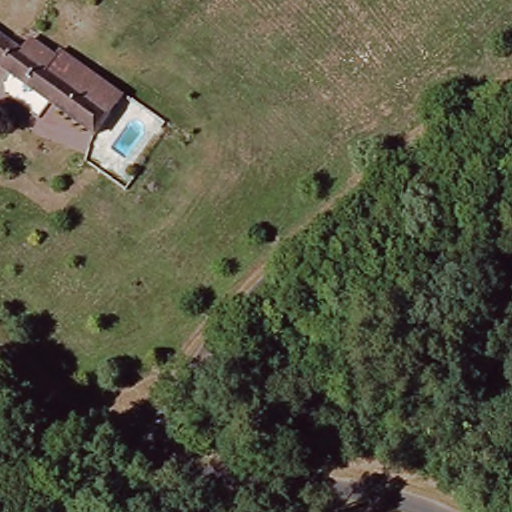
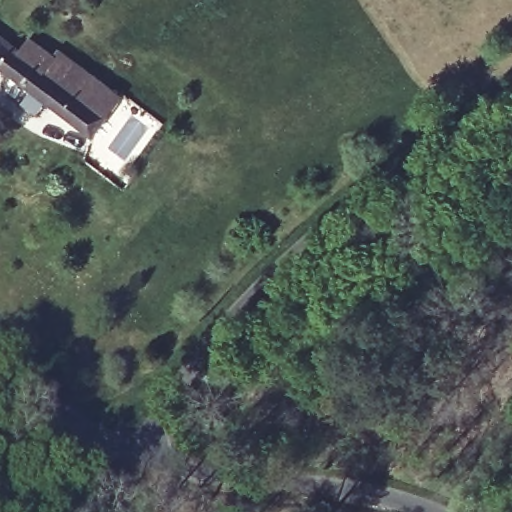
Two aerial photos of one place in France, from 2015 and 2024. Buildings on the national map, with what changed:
unchanged [(25,46),(53,65),(58,57),(120,101),(95,136),(0,70),(0,44),(18,56),(25,46)]

